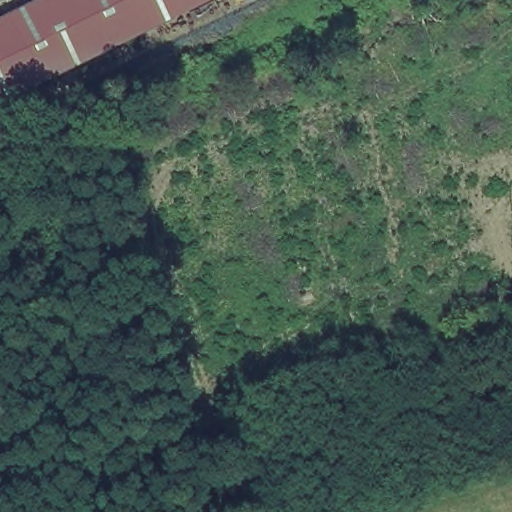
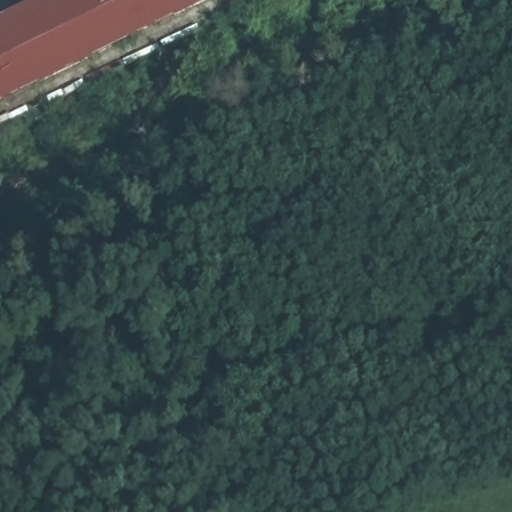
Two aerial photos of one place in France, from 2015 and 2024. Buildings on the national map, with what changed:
unchanged [(0,101),(0,17),(34,0),(205,0),(0,101)]

